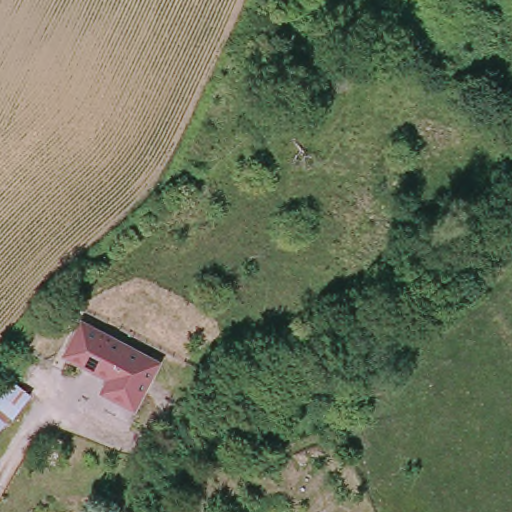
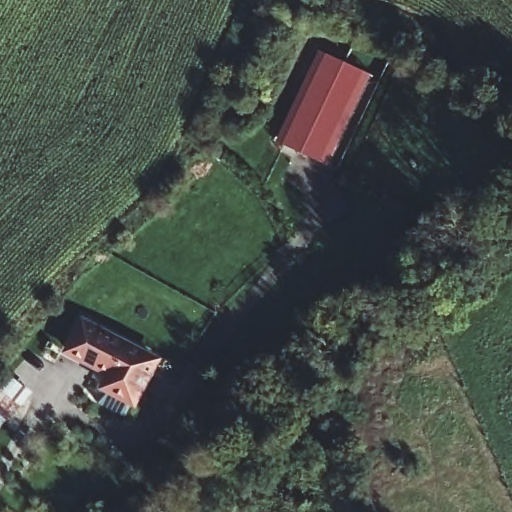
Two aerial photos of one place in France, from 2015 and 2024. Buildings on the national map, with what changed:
new [(350,70),(362,76),(323,161),(284,143),(324,57),(337,64),(339,60),(352,65),(350,70)]
unchanged [(64,355),(82,318),(162,360),(136,411),(100,392),(107,378),(64,355)]
unchanged [(32,392),(0,430),(0,387),(10,375),(32,392)]

